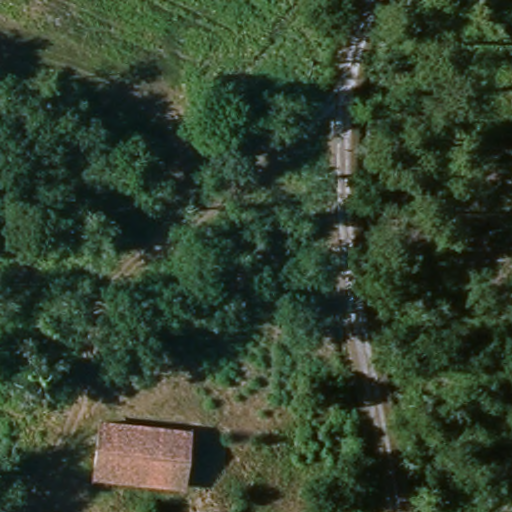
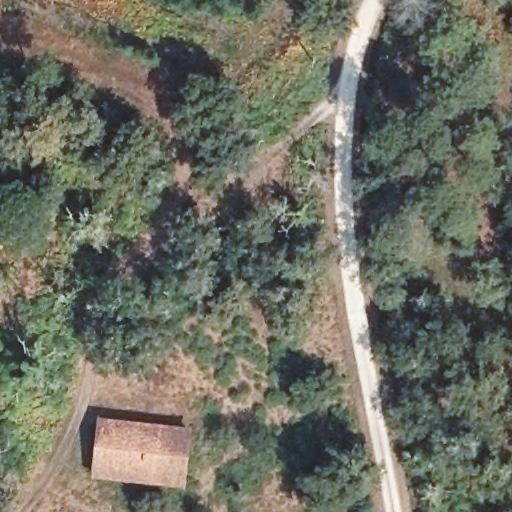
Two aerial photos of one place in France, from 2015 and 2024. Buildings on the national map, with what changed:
unchanged [(185,425),(180,488),(92,478),(96,416),(185,425)]

